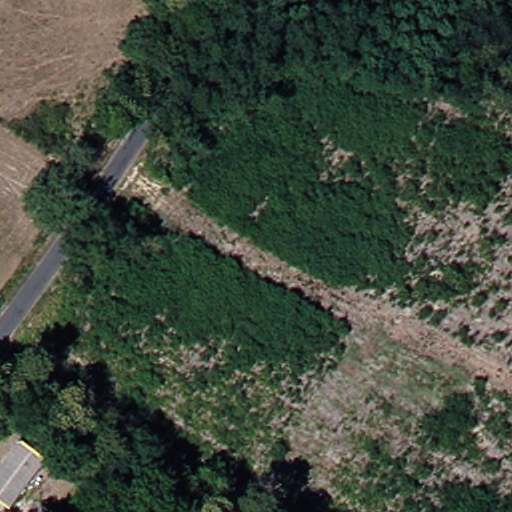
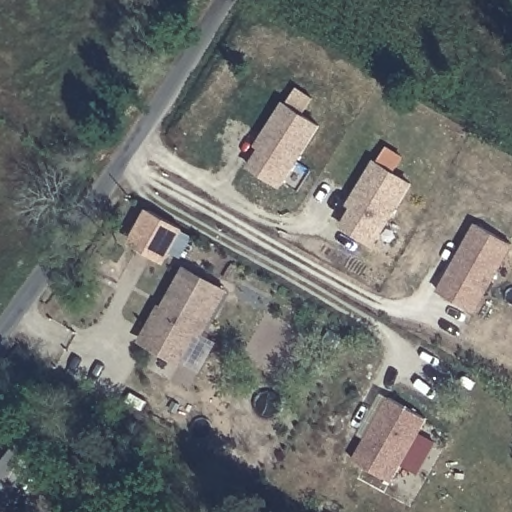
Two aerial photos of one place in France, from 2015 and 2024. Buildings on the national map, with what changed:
new [(282,110),(319,125),(283,186),(245,170),(282,110)]
new [(376,160),(414,182),(375,248),(337,225),(376,160)]
new [(153,215),(183,232),(167,261),(137,244),(153,215)]
new [(472,226),(512,248),(476,312),(437,291),(472,226)]
new [(228,291),(203,339),(195,337),(178,367),(137,342),(161,302),(164,304),(186,265),(228,291)]
unchanged [(429,419),(393,481),(352,460),(388,397),(429,419)]
unchanged [(35,453),(0,503),(0,449),(10,436),(35,453)]

